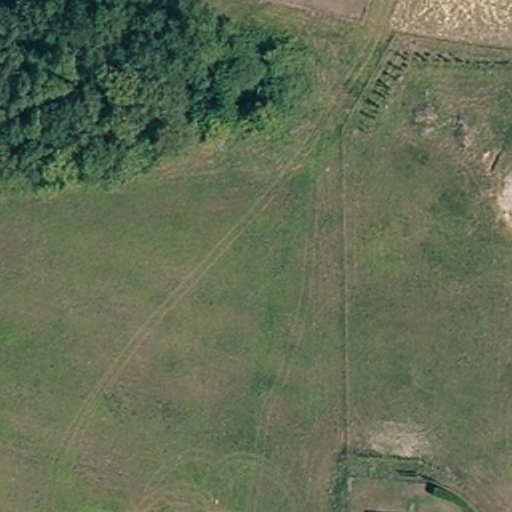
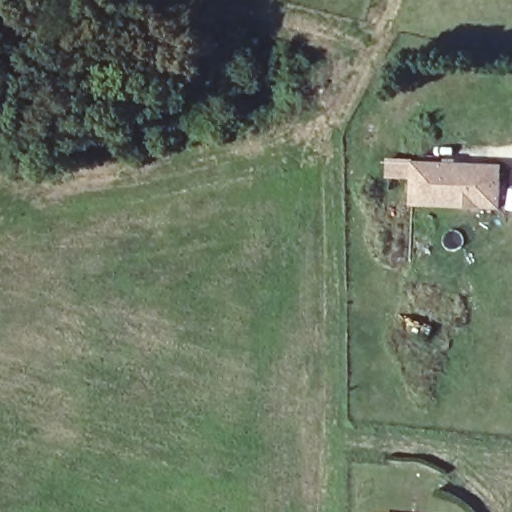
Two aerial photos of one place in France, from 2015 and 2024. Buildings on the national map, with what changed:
new [(411,206),(413,162),(501,166),(500,209),(411,206)]

